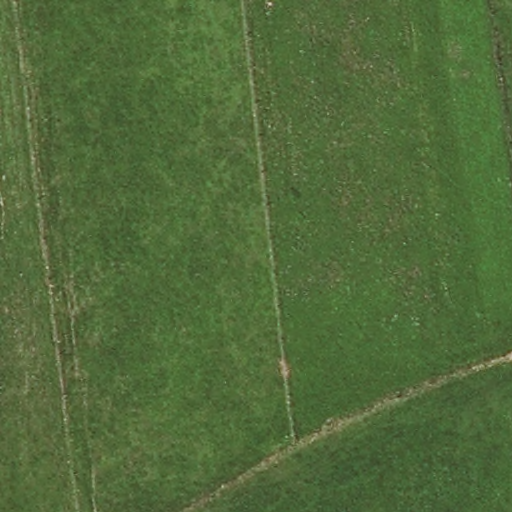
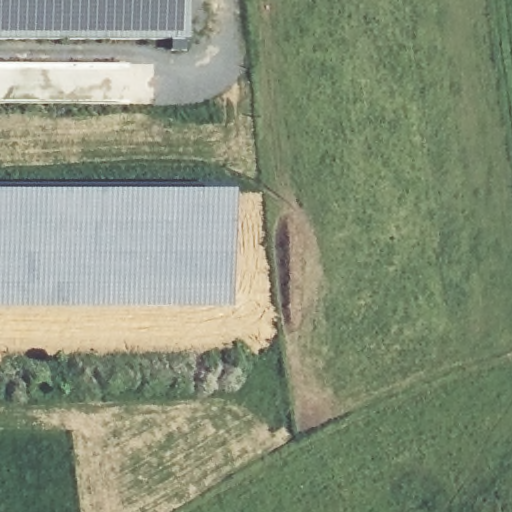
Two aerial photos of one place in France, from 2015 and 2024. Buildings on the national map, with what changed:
new [(184,42),(184,51),(169,53),(169,42),(0,42),(0,0),(184,0),(184,42)]
new [(60,194),(123,197),(176,193),(228,191),(226,263),(228,309),(0,309),(0,193),(60,194)]

